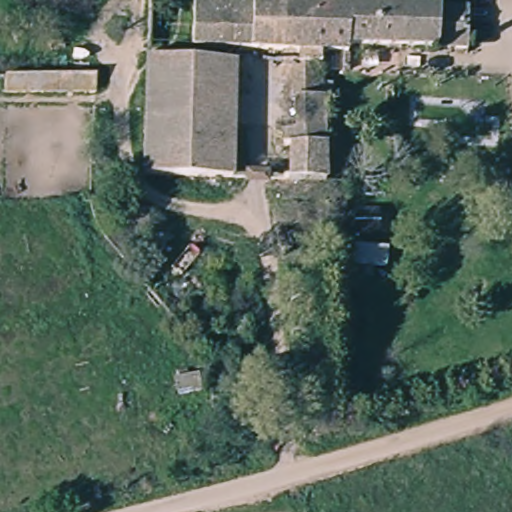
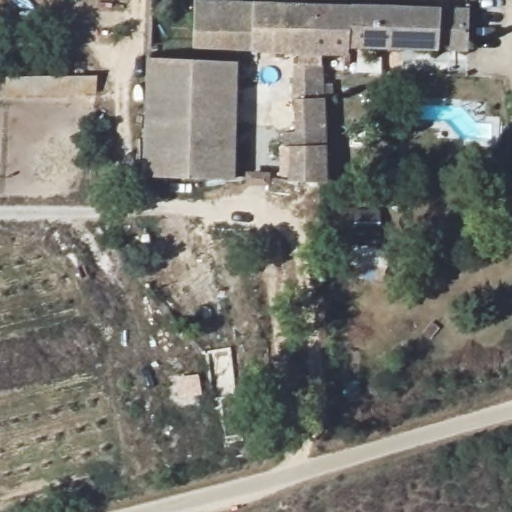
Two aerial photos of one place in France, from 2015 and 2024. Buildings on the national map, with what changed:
unchanged [(194,55),(193,7),(251,10),(250,57),(194,55)]
unchanged [(250,57),(251,10),(311,12),(311,60),(296,59),(250,57)]
unchanged [(323,61),(311,60),(311,12),(467,17),(466,58),(450,57),(346,54),(345,62),(323,61)]
unchanged [(289,189),(289,157),(280,156),(278,140),(291,141),(291,74),(295,74),(296,59),(311,60),(323,61),(326,191),(289,189)]
unchanged [(195,64),(193,123),(143,121),(146,62),(195,64)]
unchanged [(191,180),(193,123),(195,64),(233,66),(231,182),(211,181),(191,180)]
unchanged [(95,97),(5,97),(5,82),(95,82),(95,97)]
unchanged [(193,123),(191,180),(141,179),(143,121),(193,123)]
unchanged [(210,400),(204,355),(227,352),(233,397),(221,400),(210,400)]
unchanged [(176,399),(174,378),(198,377),(200,397),(176,399)]

